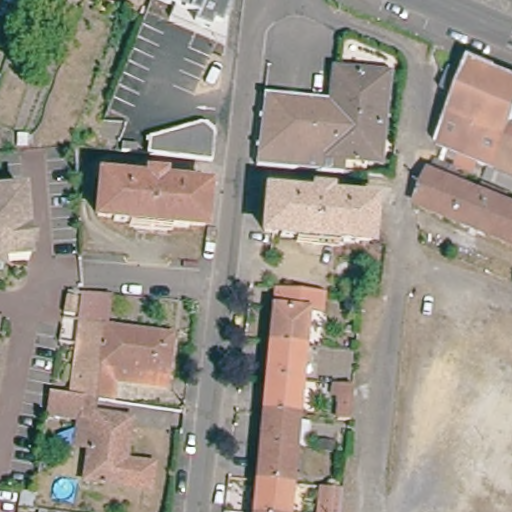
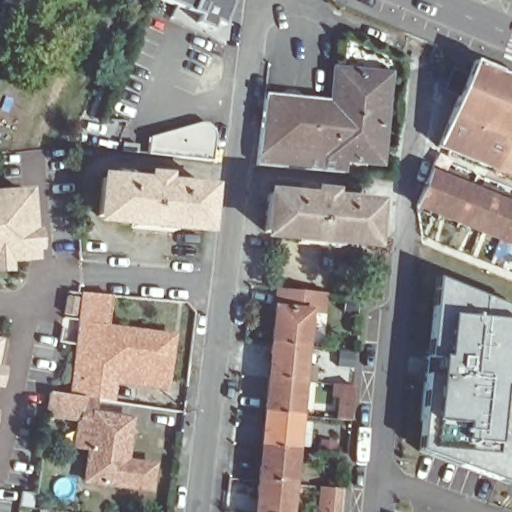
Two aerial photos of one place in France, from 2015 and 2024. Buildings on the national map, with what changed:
unchanged [(442,140),(457,101),(442,94),(451,73),(466,79),(473,61),(504,74),(512,77),(512,135),(498,171),(439,149),(442,140)]
unchanged [(288,96),(306,97),(322,99),(321,106),(338,107),(342,72),(392,77),(383,162),(371,162),(370,176),(338,172),(266,167),(263,167),(270,94),(288,96)]
demolished [(135,87),(123,117),(108,111),(121,81),(135,87)]
unchanged [(512,135),(512,177),(498,171),(512,135)]
unchanged [(191,157),(149,154),(150,137),(216,136),(214,161),(191,157)]
unchanged [(124,144),(139,145),(138,152),(128,152),(123,151),(124,144)]
unchanged [(431,173),(442,179),(446,171),(469,180),(467,187),(483,193),(486,186),(512,196),(509,203),(512,204),(512,243),(503,240),(425,209),(417,206),(417,204),(431,173)]
unchanged [(148,182),(149,177),(163,179),(163,184),(210,188),(207,226),(189,224),(189,227),(153,225),(115,221),(115,217),(100,215),(103,177),(148,182)]
unchanged [(0,194),(26,192),(31,259),(3,261),(4,271),(0,271),(0,194)]
unchanged [(374,242),(356,241),(355,245),(282,238),(282,233),(265,231),(268,194),(317,199),(319,194),(331,195),(330,201),(377,205),(374,242)]
new [(418,450),(435,278),(512,310),(512,444),(508,482),(418,450)]
unchanged [(277,292),(278,287),(313,291),(322,292),(322,297),(320,312),(309,312),(305,346),(272,342),(277,292)]
unchanged [(110,327),(176,337),(171,373),(104,365),(99,400),(98,399),(69,395),(75,353),(84,290),(115,293),(110,327)]
unchanged [(79,297),(76,315),(66,312),(69,296),(79,297)]
unchanged [(302,380),(269,377),(272,342),(305,346),(302,380)]
unchanged [(99,400),(104,365),(171,373),(169,386),(118,380),(114,401),(99,400)]
unchanged [(302,380),(299,413),(266,411),(269,377),(302,380)]
unchanged [(340,416),(342,393),(336,392),(336,383),(343,383),(355,385),(352,417),(340,416)]
unchanged [(96,413),(124,417),(132,418),(131,432),(126,461),(154,465),(151,489),(86,481),(91,447),(79,445),(81,428),(81,418),(49,413),(51,392),(69,395),(98,399),(96,413)]
unchanged [(295,447),(263,445),(266,411),(299,413),(295,447)]
unchanged [(292,482),(259,479),(263,445),(295,447),(292,482)]
unchanged [(288,512),(256,512),(259,479),(292,482),(288,512)]
unchanged [(345,485),(343,512),(322,512),(325,484),(345,485)]

